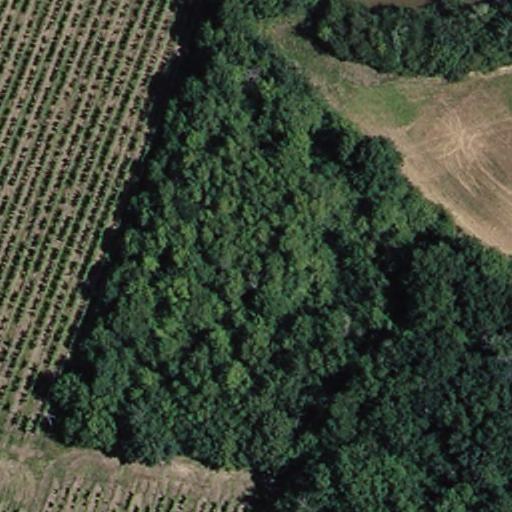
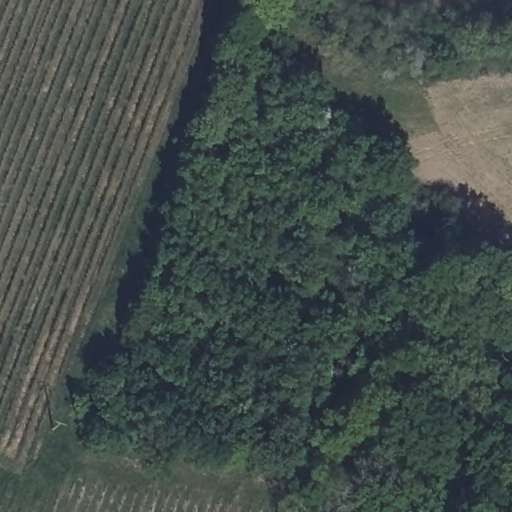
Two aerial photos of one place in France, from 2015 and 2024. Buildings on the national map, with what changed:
[]

